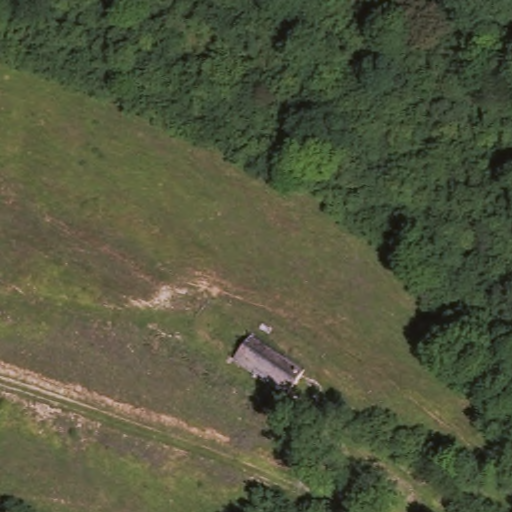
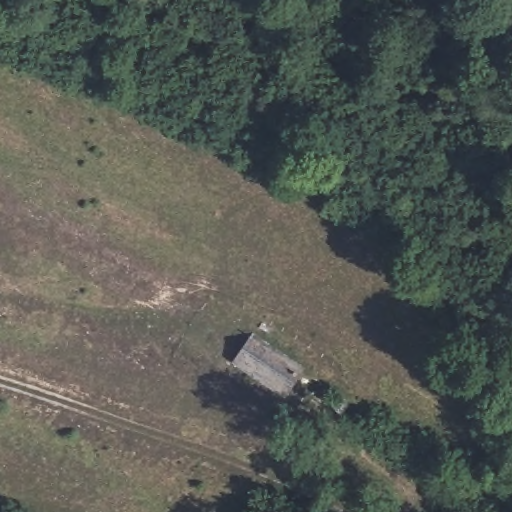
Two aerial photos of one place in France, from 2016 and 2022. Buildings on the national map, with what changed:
unchanged [(271,357),(310,373),(294,402),(242,385),(254,350),(271,357)]

